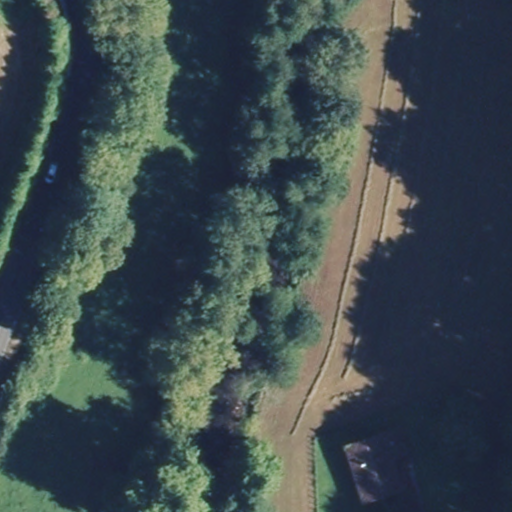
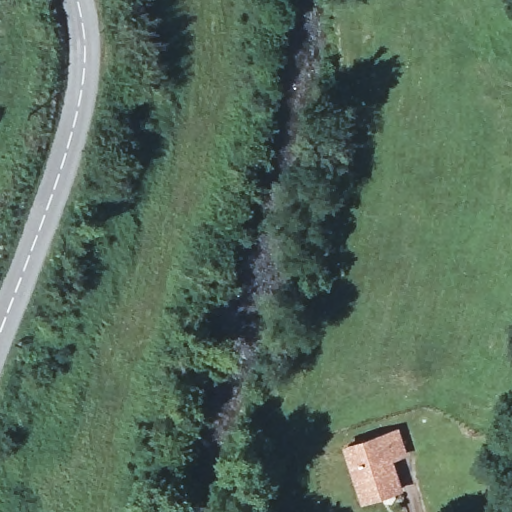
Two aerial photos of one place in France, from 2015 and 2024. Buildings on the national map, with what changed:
unchanged [(346,443),(382,437),(396,435),(401,460),(387,463),(391,481),(393,493),(356,500),(354,489),(346,443)]

